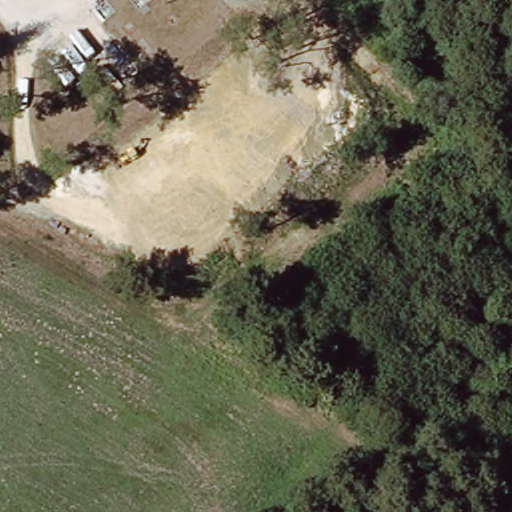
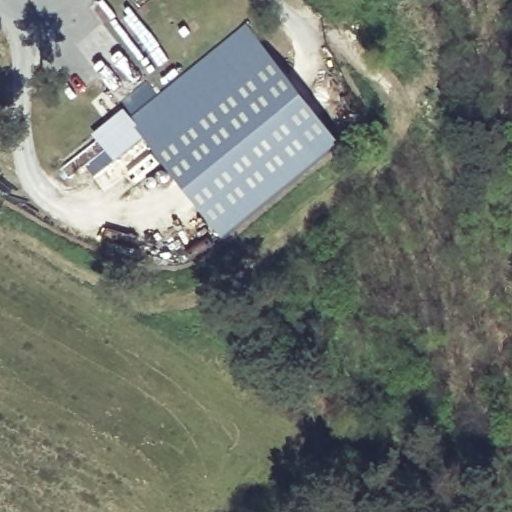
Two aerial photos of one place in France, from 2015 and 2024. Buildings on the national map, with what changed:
unchanged [(97,1),(95,0),(98,0),(97,1)]
new [(249,60),(326,156),(227,234),(151,137),(249,60)]

